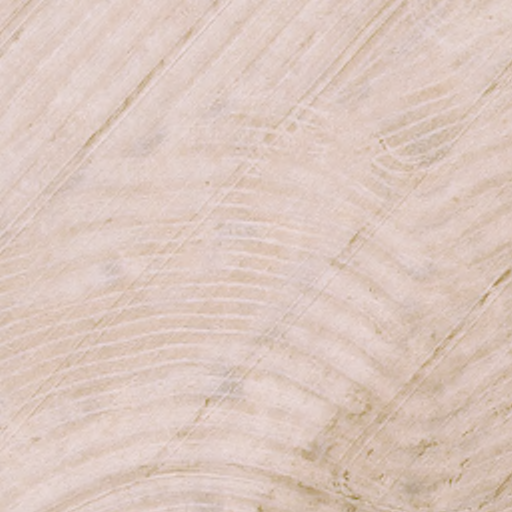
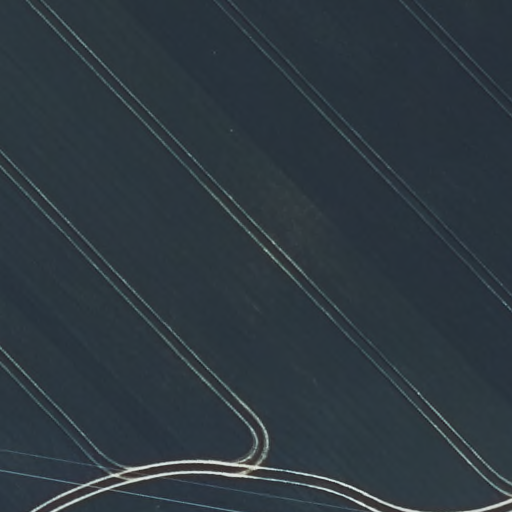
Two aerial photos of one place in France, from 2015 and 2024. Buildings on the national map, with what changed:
[]

